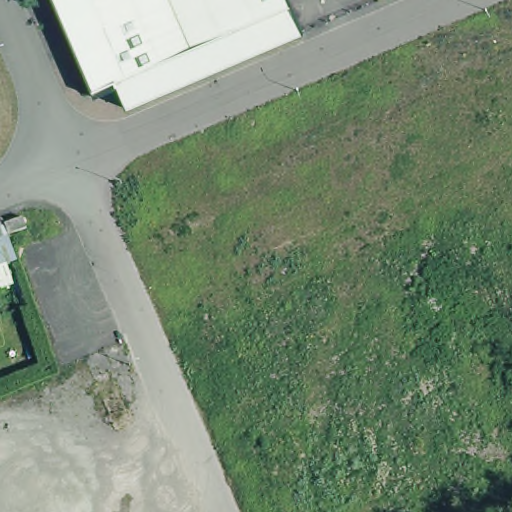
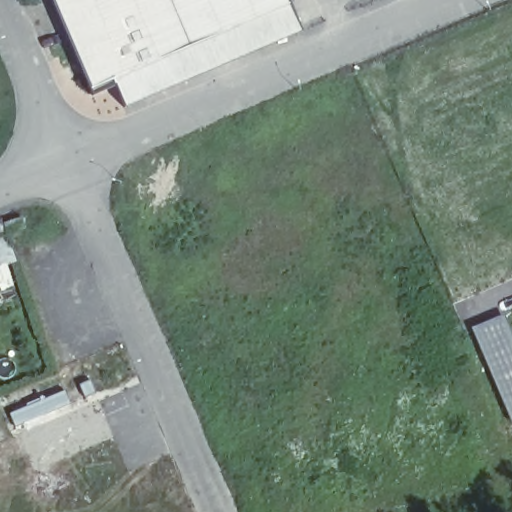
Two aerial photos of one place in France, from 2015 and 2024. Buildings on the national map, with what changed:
unchanged [(89,86),(52,0),(289,0),(113,75),(92,85),(89,86)]
unchanged [(292,0),(304,28),(125,103),(113,75),(289,0),(292,0)]
unchanged [(1,220),(7,234),(0,236),(0,220),(1,220)]
new [(512,336),(512,423),(511,424),(469,327),(502,313),(512,336)]
new [(90,379),(96,393),(85,398),(79,384),(90,379)]
new [(65,391),(71,404),(15,427),(10,413),(65,391)]

